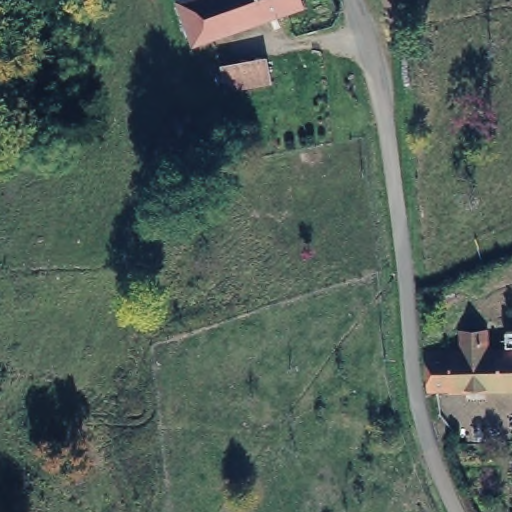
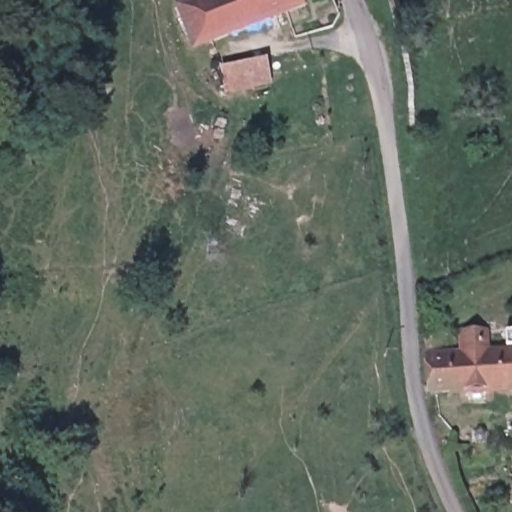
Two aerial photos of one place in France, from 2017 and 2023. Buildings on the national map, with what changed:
unchanged [(196,47),(182,4),(195,0),(307,0),(308,5),(196,47)]
unchanged [(275,79),(276,84),(226,95),(220,64),(270,53),(270,58),(286,55),(291,74),(275,79)]
unchanged [(484,384),(450,386),(450,392),(425,391),(426,353),(457,354),(458,334),(485,335),(485,352),(512,352),(512,392),(484,392),(484,384)]

